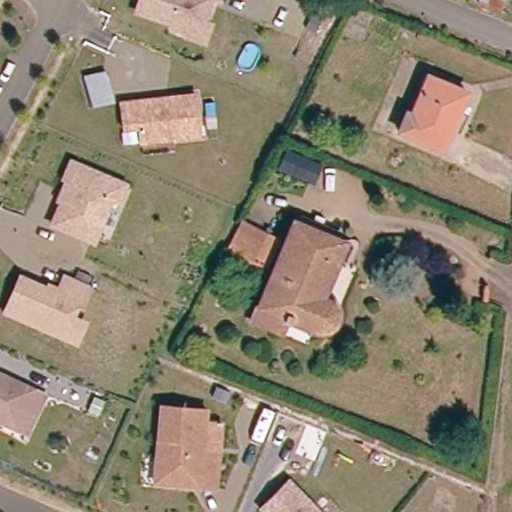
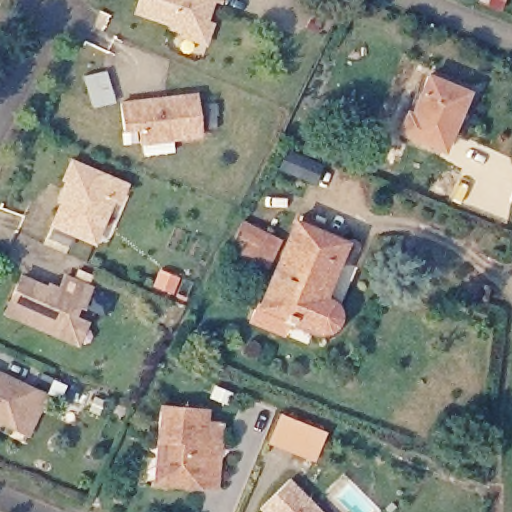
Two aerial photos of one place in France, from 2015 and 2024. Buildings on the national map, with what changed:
unchanged [(189,36),(191,29),(138,11),(142,0),(213,0),(206,21),(213,24),(207,42),(189,36)]
unchanged [(479,4),(480,0),(502,0),(499,9),(479,4)]
unchanged [(445,149),(405,133),(415,108),(422,111),(436,80),(476,95),(466,119),(460,115),(445,149)]
unchanged [(198,135),(139,141),(137,127),(122,129),(119,102),(151,98),(161,97),(194,94),(198,135)]
unchanged [(268,174),(281,145),(321,164),(310,189),(268,174)]
unchanged [(93,241),(52,224),(70,181),(63,178),(71,161),(125,184),(118,201),(111,198),(93,241)]
unchanged [(278,334),(252,321),(261,305),(266,307),(280,273),(233,250),(248,224),(292,243),(299,229),(343,247),(323,296),(330,304),(332,311),(327,325),(314,330),(307,328),(287,318),(278,334)]
unchanged [(75,343),(62,337),(4,313),(19,278),(56,294),(63,278),(88,288),(81,305),(76,303),(70,318),(84,324),(75,343)]
unchanged [(26,432),(0,420),(0,373),(32,387),(44,392),(26,432)]
unchanged [(98,415),(88,410),(94,397),(104,401),(98,415)]
unchanged [(157,440),(160,406),(206,410),(204,426),(220,428),(218,452),(214,489),(197,487),(153,483),(157,440)]
new [(266,443),(279,412),(326,431),(314,462),(266,443)]
unchanged [(260,509),(287,481),(319,512),(263,512),(260,509)]

